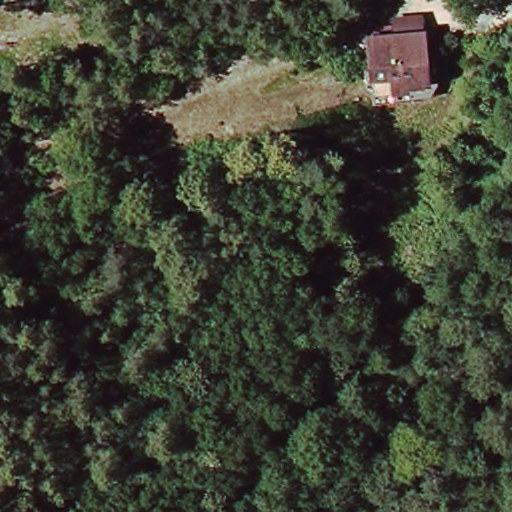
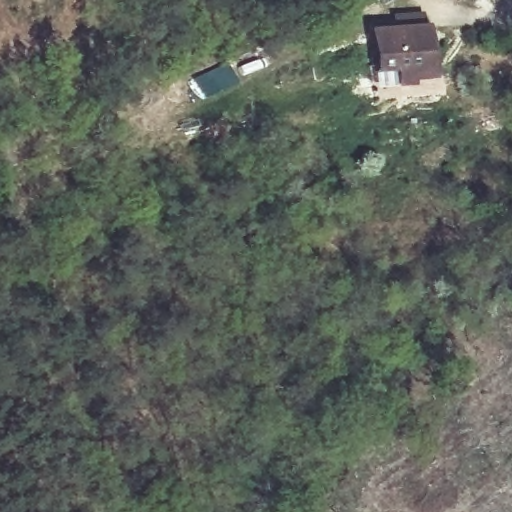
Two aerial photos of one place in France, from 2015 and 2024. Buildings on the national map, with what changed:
unchanged [(423,39),(423,55),(422,84),(402,84),(402,93),(386,91),(377,91),(377,84),(361,81),(361,37),(394,37),(423,39)]

